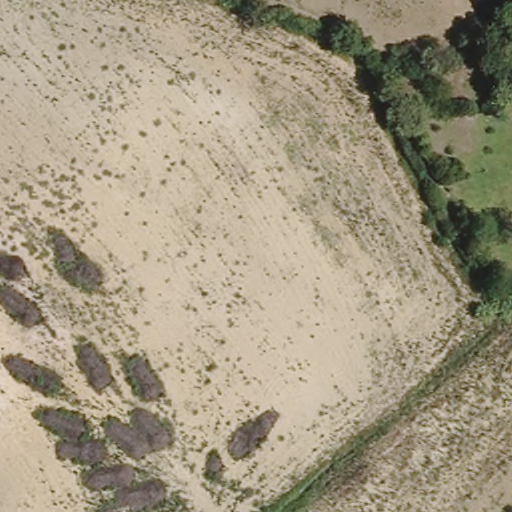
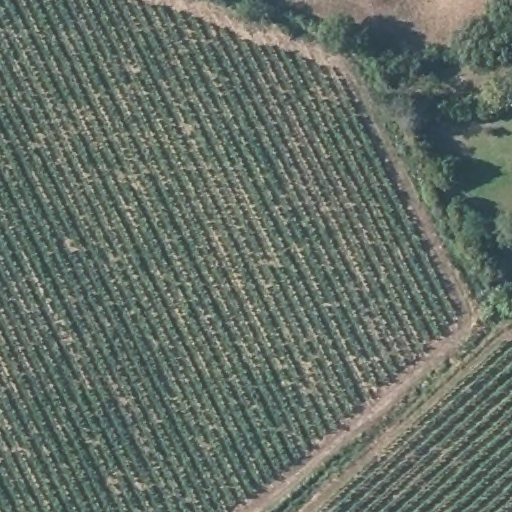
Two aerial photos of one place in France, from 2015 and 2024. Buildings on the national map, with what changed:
[]

